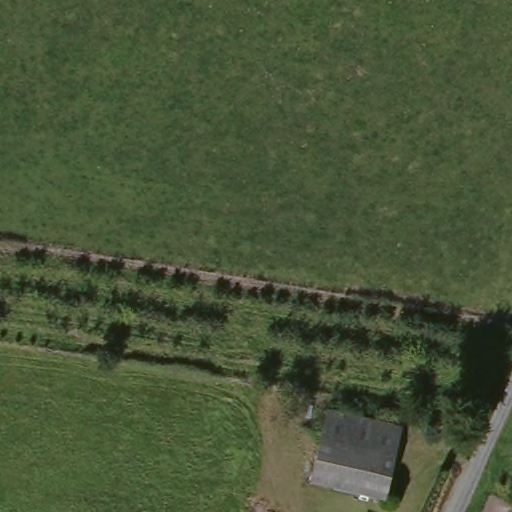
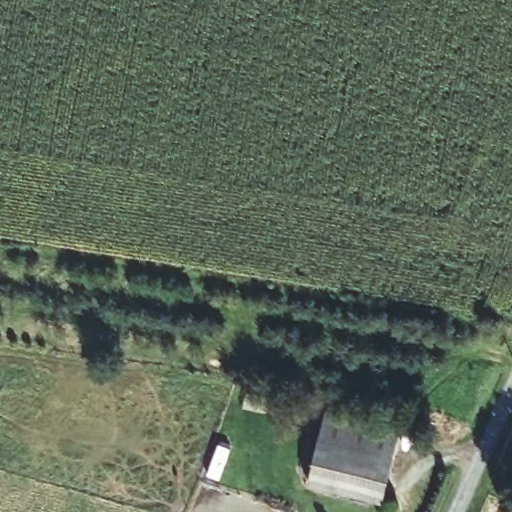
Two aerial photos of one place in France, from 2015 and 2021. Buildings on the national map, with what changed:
unchanged [(400,432),(381,503),(307,488),(324,417),(400,432)]

